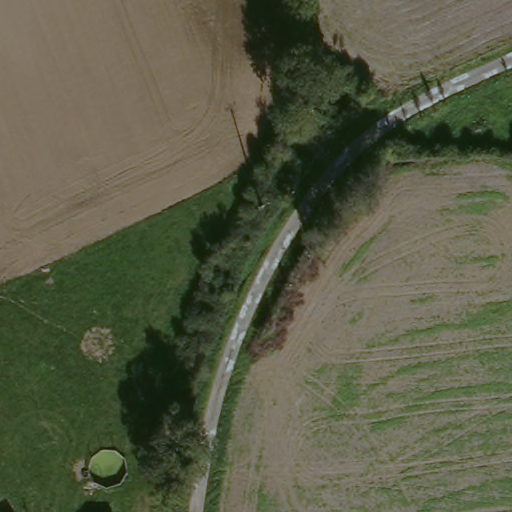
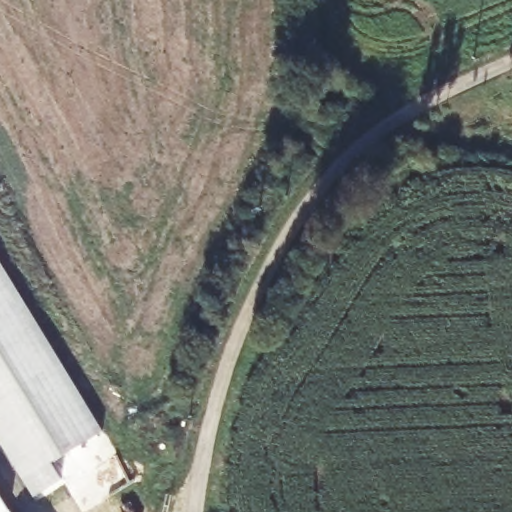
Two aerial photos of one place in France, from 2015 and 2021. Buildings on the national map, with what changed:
new [(0,260),(103,431),(51,462),(62,480),(34,496),(0,440),(0,260)]

